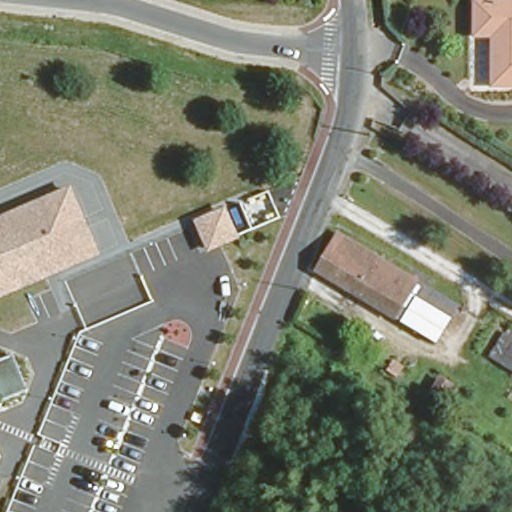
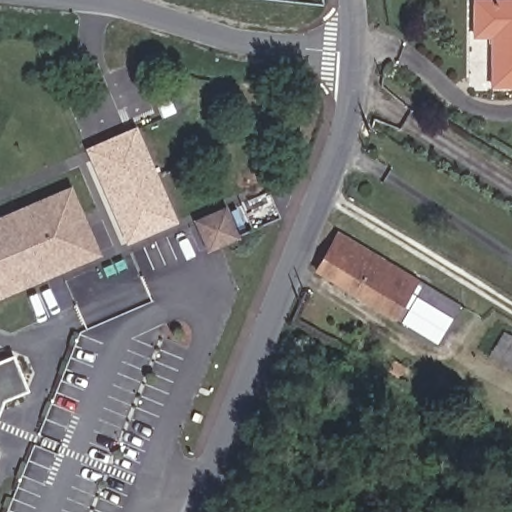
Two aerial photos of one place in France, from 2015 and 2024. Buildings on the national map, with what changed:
unchanged [(501,29),(484,26),(488,0),(512,0),(512,86),(493,83),(501,29)]
new [(126,245),(85,149),(136,126),(178,223),(126,245)]
unchanged [(0,299),(0,216),(71,187),(102,257),(0,299)]
unchanged [(209,253),(195,221),(228,207),(242,239),(209,253)]
unchanged [(392,310),(314,263),(337,225),(415,271),(392,310)]
unchanged [(461,299),(435,338),(392,310),(415,271),(461,299)]
unchanged [(501,334),(512,340),(512,369),(488,355),(501,334)]
unchanged [(13,355),(29,391),(3,402),(0,409),(0,361),(13,355)]

